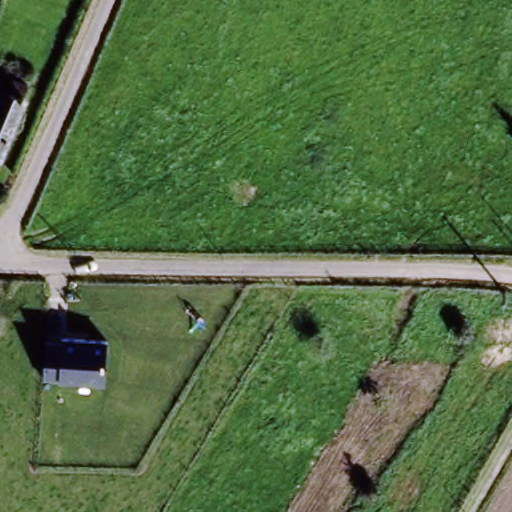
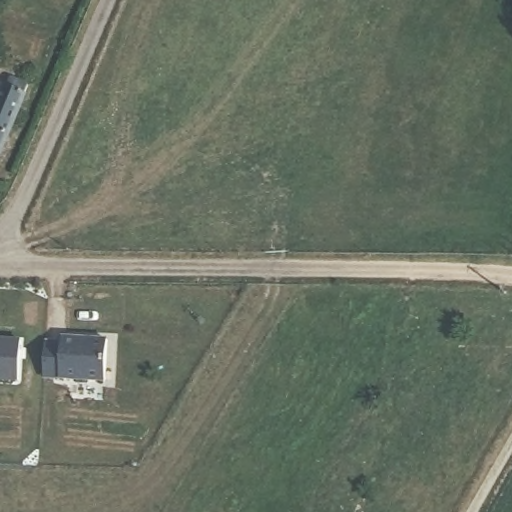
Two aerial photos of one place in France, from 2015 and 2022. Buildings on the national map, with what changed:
unchanged [(7,86),(10,80),(27,87),(0,152),(0,96),(4,85),(7,86)]
new [(17,381),(0,379),(0,336),(19,337),(17,381)]
unchanged [(47,342),(60,342),(61,336),(108,340),(105,381),(45,375),(47,342)]

